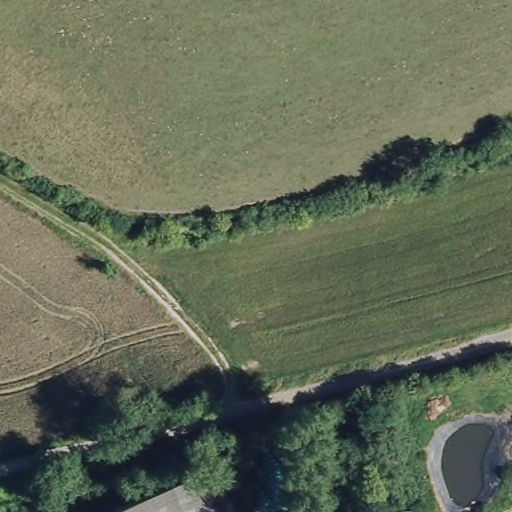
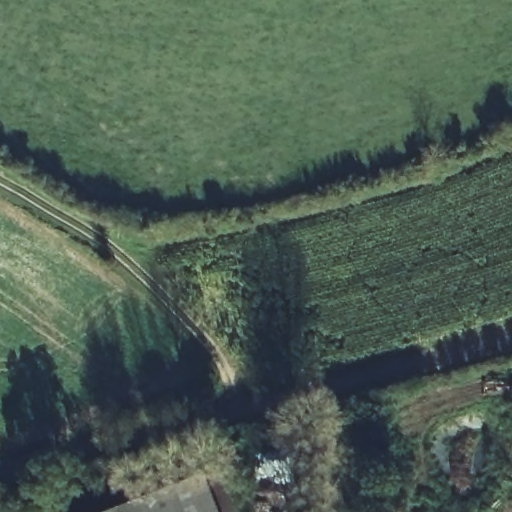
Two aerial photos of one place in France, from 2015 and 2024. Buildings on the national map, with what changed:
unchanged [(193,477),(206,512),(165,512),(156,488),(193,477)]
unchanged [(156,488),(165,512),(86,512),(156,488)]

